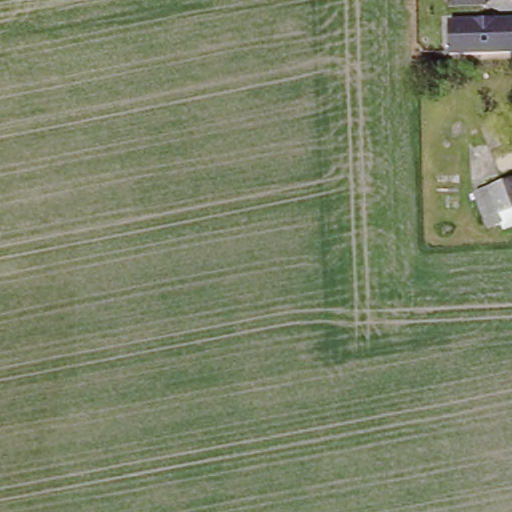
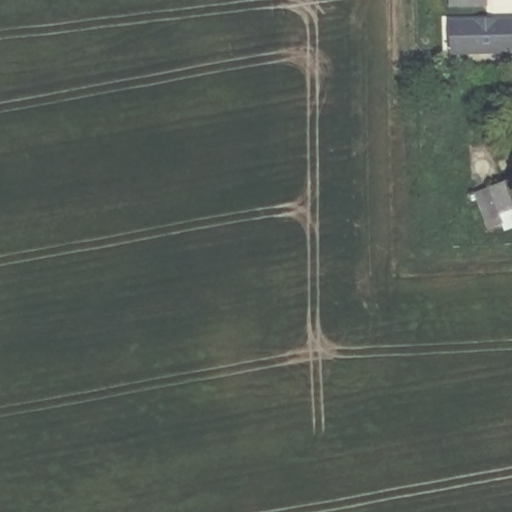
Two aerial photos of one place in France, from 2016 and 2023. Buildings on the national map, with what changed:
unchanged [(486,12),(447,13),(446,0),(485,0),(486,12)]
unchanged [(447,49),(447,17),(474,17),(474,15),(491,15),(491,16),(512,16),(512,48),(447,49)]
unchanged [(512,182),(512,213),(497,219),(501,228),(487,234),(472,199),(486,193),(512,182)]

